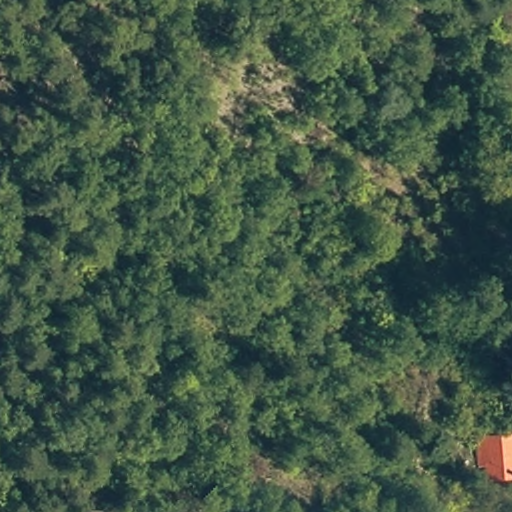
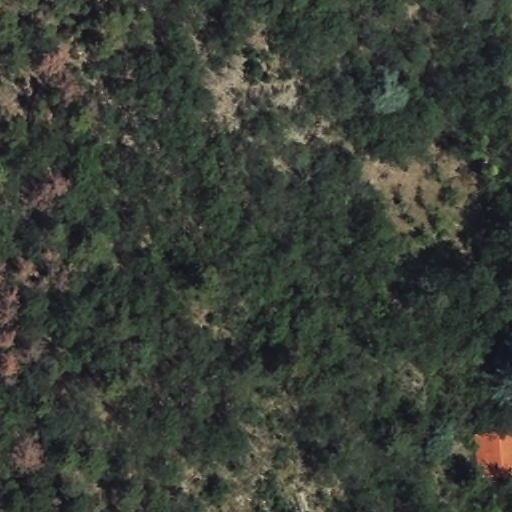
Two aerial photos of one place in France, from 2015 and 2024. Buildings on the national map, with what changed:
unchanged [(490,478),(488,464),(481,465),(478,437),(512,434),(512,476),(510,476),(490,478)]

